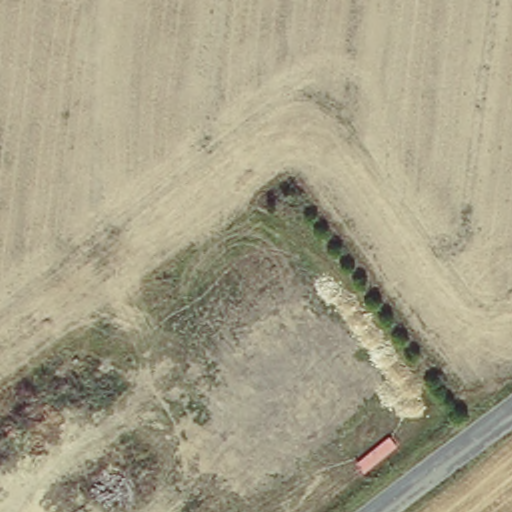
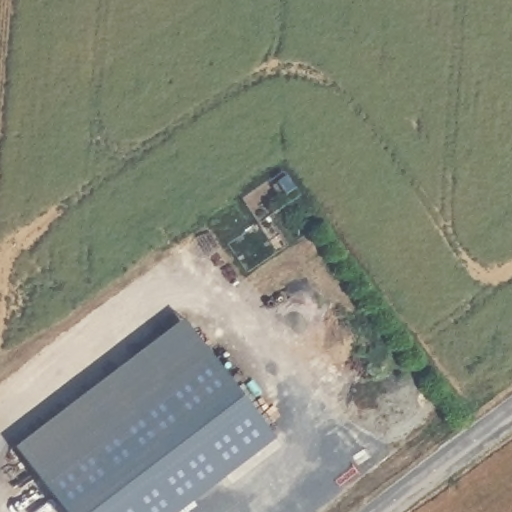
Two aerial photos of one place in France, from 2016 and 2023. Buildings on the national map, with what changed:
new [(175,321),(257,430),(150,512),(69,512),(19,436),(175,321)]

